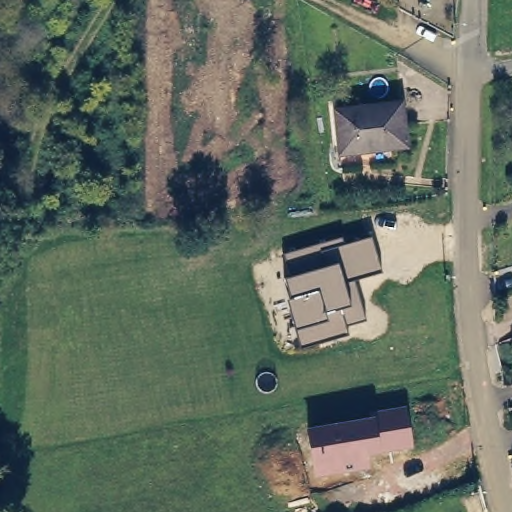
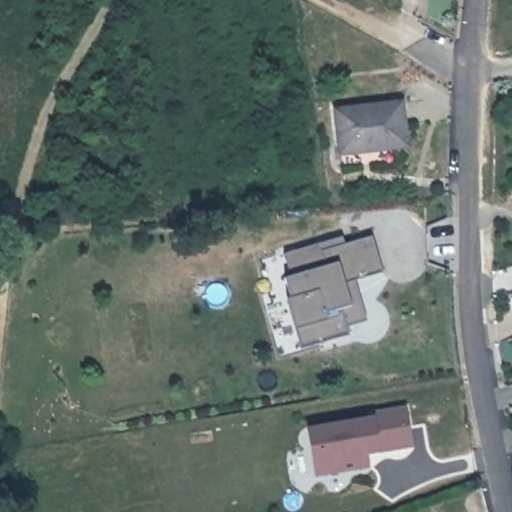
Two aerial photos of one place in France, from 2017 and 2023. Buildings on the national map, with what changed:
unchanged [(392,98),(399,138),(333,145),(330,103),(392,98)]
unchanged [(287,300),(292,298),(285,278),(291,276),(286,254),(342,238),(344,245),(370,239),(381,271),(354,280),(365,320),(345,325),(347,335),(299,348),(287,300)]
unchanged [(405,405),(413,447),(367,455),(370,468),(314,477),(306,428),(373,417),(375,410),(405,405)]

